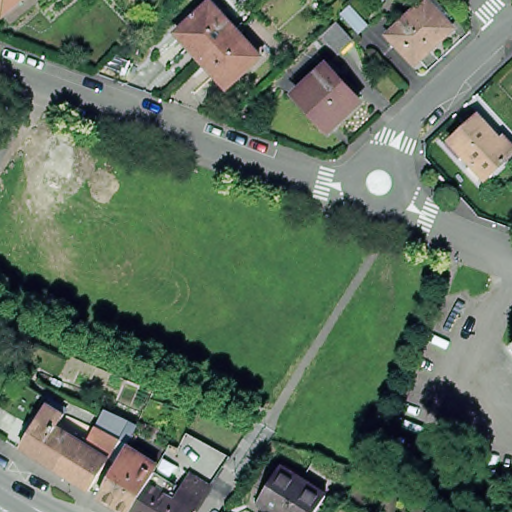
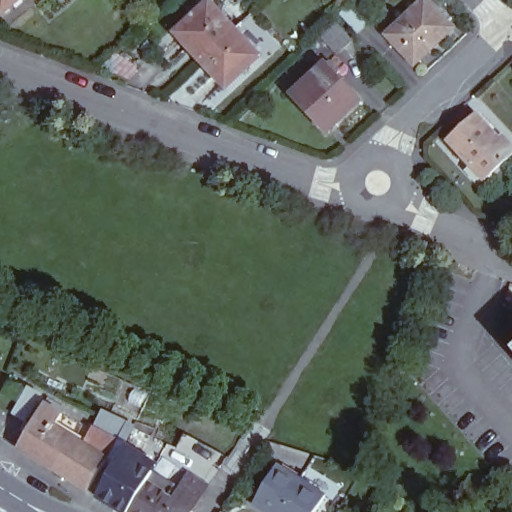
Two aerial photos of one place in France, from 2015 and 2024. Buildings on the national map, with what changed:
unchanged [(0,8),(0,0),(30,0),(8,18),(0,8)]
unchanged [(394,40),(389,34),(426,0),(436,0),(452,17),(447,23),(452,29),(415,62),(410,68),(389,46),(394,40)]
unchanged [(351,5),(370,25),(360,34),(341,14),(351,5)]
unchanged [(212,65),(189,37),(221,8),(245,35),(212,65)]
unchanged [(337,22),(353,40),(339,53),(322,36),(337,22)]
unchanged [(270,62),(237,91),(212,65),(245,35),(270,62)]
unchanged [(354,101),(324,130),(291,95),(327,62),(336,72),(331,76),(354,101)]
unchanged [(444,145),(472,119),(494,144),(497,141),(512,156),(481,185),(444,145)]
unchanged [(96,431),(117,442),(107,458),(87,490),(36,457),(21,447),(50,400),(65,410),(55,426),(86,446),(96,431)]
unchanged [(135,428),(126,447),(120,443),(127,425),(134,428),(135,428)]
unchanged [(122,453),(126,447),(157,467),(154,473),(147,483),(129,512),(122,512),(98,497),(117,463),(122,453)]
unchanged [(325,491),(311,512),(278,512),(275,510),(256,498),(278,462),(294,472),(325,491)]
unchanged [(147,483),(174,500),(190,474),(210,487),(194,512),(129,512),(147,483)]

